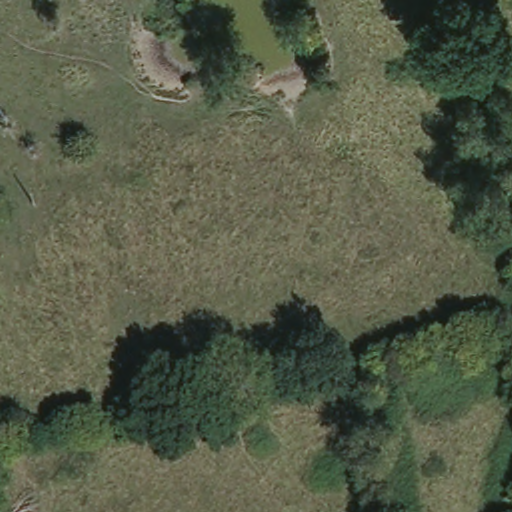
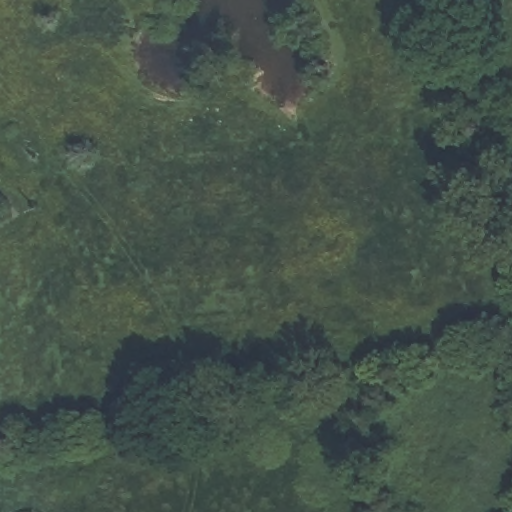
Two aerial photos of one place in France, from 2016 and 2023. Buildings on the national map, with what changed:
unchanged [(6,217),(0,218),(0,195),(2,195),(6,217)]

